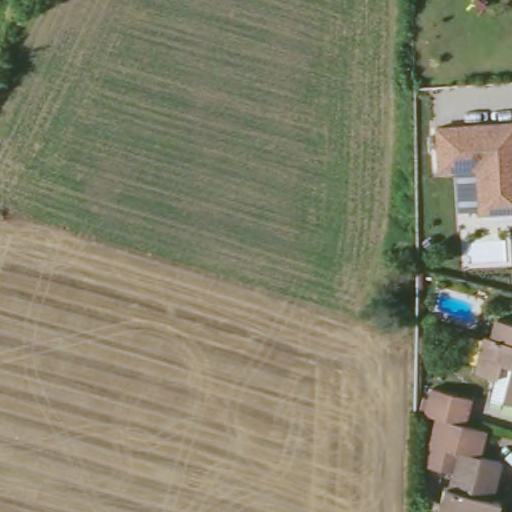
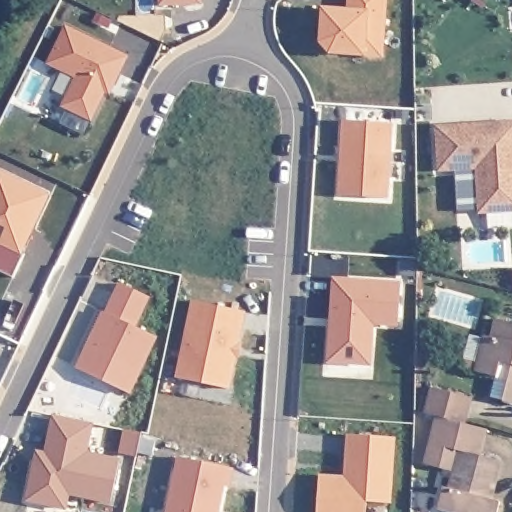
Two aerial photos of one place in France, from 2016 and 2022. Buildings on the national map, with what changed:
new [(158,6),(158,0),(203,0),(203,5),(158,6)]
new [(366,57),(330,55),(320,43),(322,8),(346,9),(347,0),(388,0),(384,56),(366,57)]
new [(130,56),(110,95),(106,93),(93,121),(60,106),(75,78),(47,64),(65,25),(130,56)]
new [(394,124),(390,199),(338,195),(342,121),(394,124)]
unchanged [(512,122),(512,210),(477,212),(475,167),(438,168),(437,125),(512,122)]
new [(50,195),(21,255),(0,245),(0,171),(50,195)]
new [(150,297),(137,328),(157,338),(132,395),(76,368),(102,311),(105,313),(119,283),(150,297)]
new [(245,313),(231,389),(176,377),(191,302),(245,313)]
unchanged [(501,379),(480,374),(481,367),(468,364),(474,338),(486,341),(487,335),(494,337),(497,320),(512,324),(512,402),(497,398),(501,379)]
unchanged [(436,418),(422,413),(430,387),(467,396),(460,422),(436,418)]
new [(44,452),(51,415),(93,423),(88,452),(120,459),(111,504),(69,496),(67,510),(25,501),(35,451),(44,452)]
unchanged [(460,422),(486,429),(479,457),(499,461),(490,501),(499,503),(496,512),(445,512),(440,511),(444,489),(450,490),(454,471),(424,465),(436,418),(460,422)]
new [(346,435),(397,438),(392,504),(367,503),(366,512),(316,512),(319,475),(344,476),(346,435)]
new [(233,469),(231,486),(225,485),(220,512),(165,512),(177,458),(233,469)]

